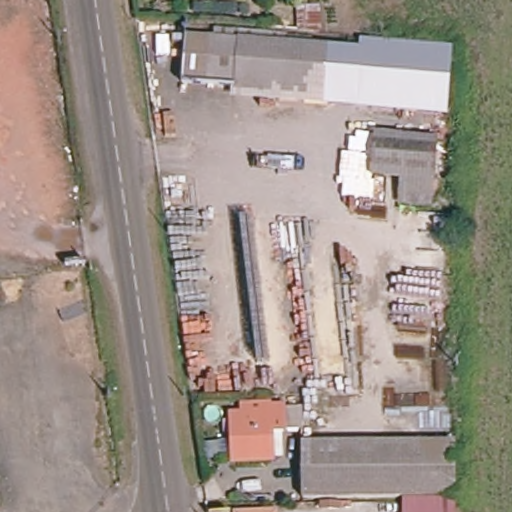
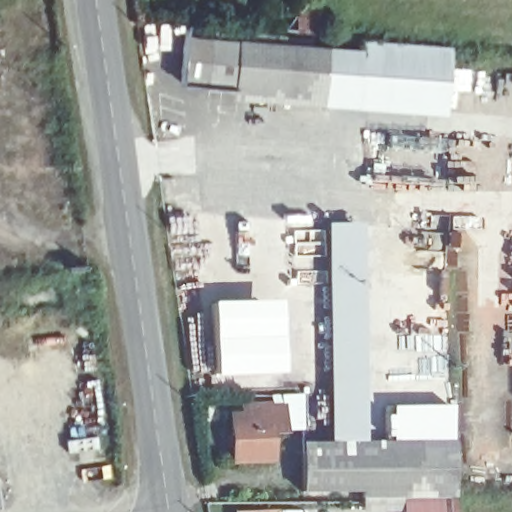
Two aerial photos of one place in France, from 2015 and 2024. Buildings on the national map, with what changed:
unchanged [(355,101),(178,85),(182,42),(214,44),(215,34),(312,42),(312,50),(359,54),(355,101)]
unchanged [(452,63),(447,109),(355,101),(359,54),(452,63)]
new [(362,225),(365,448),(331,448),(328,226),(362,225)]
new [(279,303),(282,377),(214,379),(211,306),(279,303)]
new [(452,406),(452,447),(392,447),(391,408),(452,406)]
unchanged [(273,421),(273,413),(283,414),(283,436),(272,437),(273,463),(237,464),(237,421),(273,421)]
unchanged [(457,447),(457,493),(304,496),(303,448),(457,447)]
unchanged [(458,512),(401,512),(401,501),(457,501),(458,512)]
unchanged [(1,511),(0,511),(0,508),(1,511)]
unchanged [(278,512),(242,512),(278,510),(278,512)]

